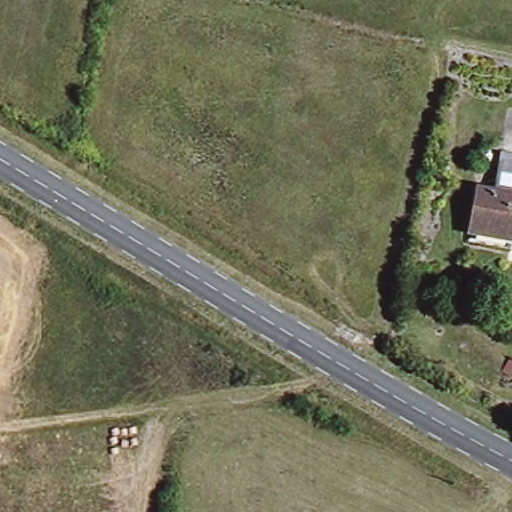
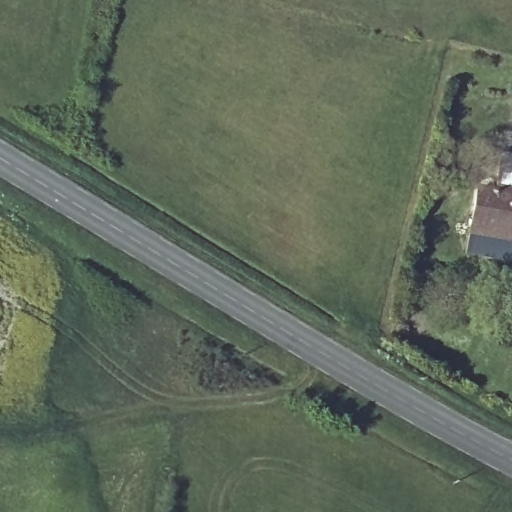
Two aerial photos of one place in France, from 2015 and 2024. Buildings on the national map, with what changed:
unchanged [(469,184),(469,169),(483,169),(483,184),(469,184)]
unchanged [(488,192),(512,196),(512,239),(481,233),(488,192)]

